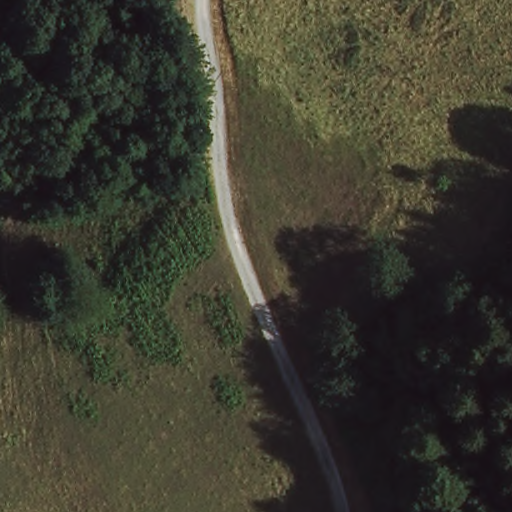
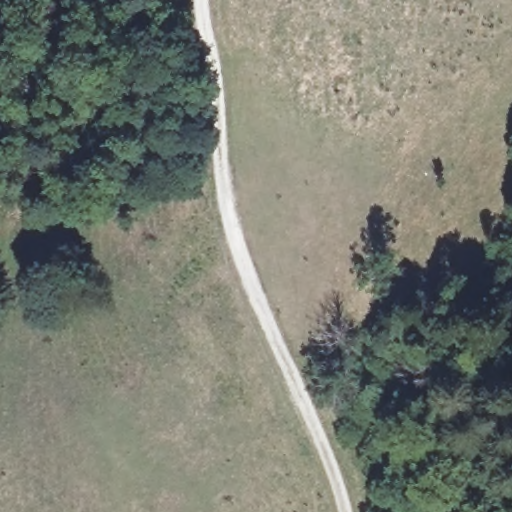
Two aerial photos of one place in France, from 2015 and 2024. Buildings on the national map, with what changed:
[]

